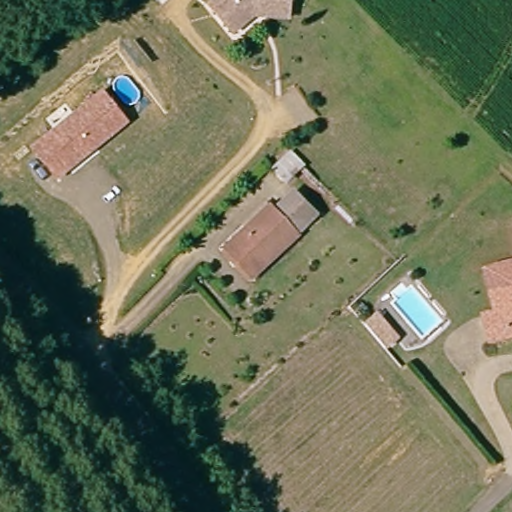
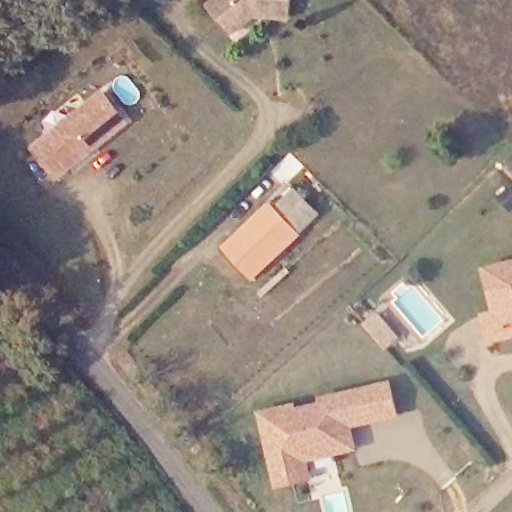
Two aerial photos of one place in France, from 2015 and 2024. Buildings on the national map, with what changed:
unchanged [(230,37),(207,9),(218,0),(288,0),(287,22),(265,20),(250,19),(230,37)]
unchanged [(63,163),(51,170),(32,139),(55,124),(48,112),(68,98),(76,111),(105,92),(125,123),(127,126),(94,147),(96,150),(67,169),(63,163)]
demolished [(105,186),(86,155),(109,140),(130,126),(159,108),(179,139),(117,179),(105,186)]
unchanged [(249,284),(215,248),(267,198),(274,204),(294,184),(322,217),(249,284)]
unchanged [(486,322),(501,319),(493,276),(512,271),(512,343),(494,347),(486,322)]
unchanged [(368,329),(380,319),(394,335),(401,342),(386,352),(381,346),(368,329)]
new [(354,428),(358,451),(309,460),(314,480),(276,488),(257,410),(295,402),(297,406),(319,400),(318,396),(391,379),(400,415),(354,428)]

